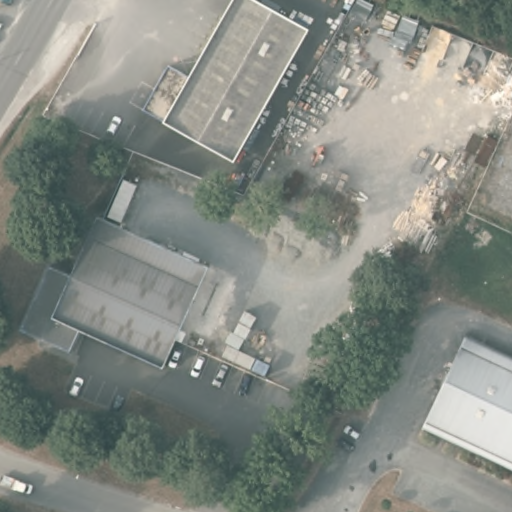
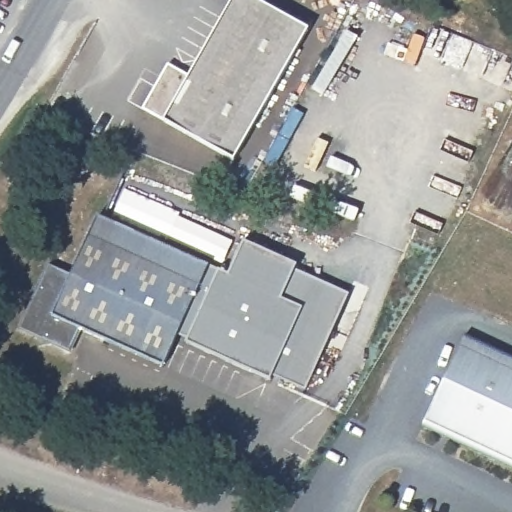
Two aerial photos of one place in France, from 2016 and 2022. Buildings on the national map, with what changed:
unchanged [(169,64),(191,76),(234,0),(261,0),(313,30),(233,161),(143,109),(169,64)]
unchanged [(158,378),(74,339),(64,360),(15,336),(50,261),(72,270),(99,212),(210,265),(158,378)]
new [(305,390),(272,375),(270,380),(185,343),(186,339),(178,335),(210,265),(219,269),(227,273),(243,240),(297,265),(295,269),(348,294),(305,390)]
unchanged [(512,358),(512,369),(456,346),(461,336),(512,358)]
unchanged [(512,469),(419,431),(456,346),(512,369),(512,469)]

